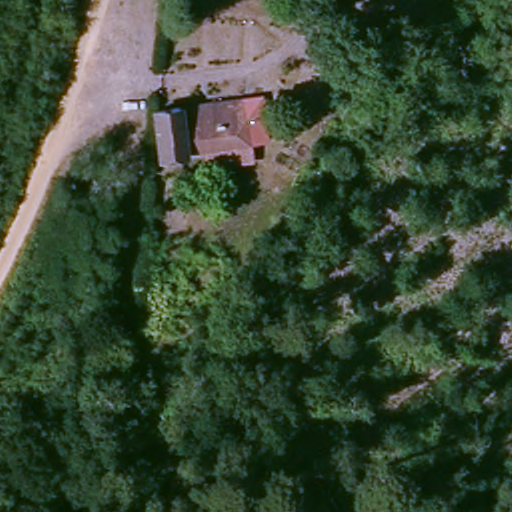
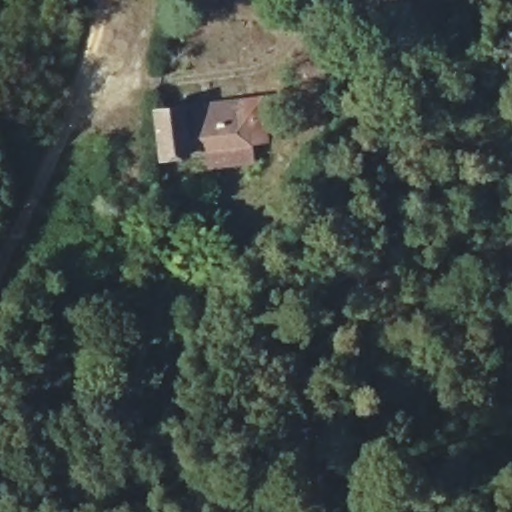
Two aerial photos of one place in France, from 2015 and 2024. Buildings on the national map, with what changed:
unchanged [(203,165),(202,147),(151,151),(144,100),(279,91),(282,136),(243,141),(246,161),(203,165)]

